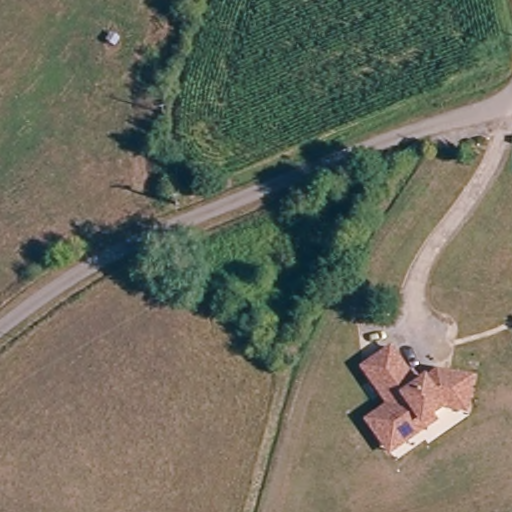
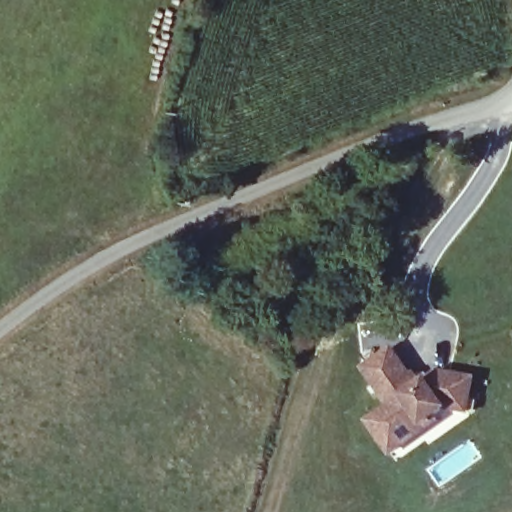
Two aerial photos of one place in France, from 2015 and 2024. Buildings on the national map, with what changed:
unchanged [(470,413),(448,408),(424,429),(392,456),(365,417),(386,403),(362,363),(393,345),(411,371),(416,368),(423,377),(440,366),(477,375),(470,413)]

